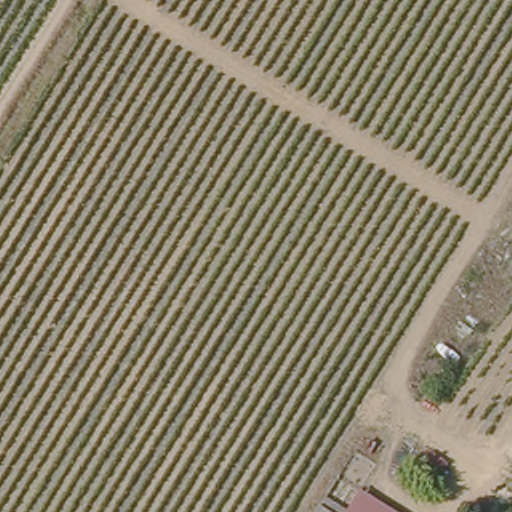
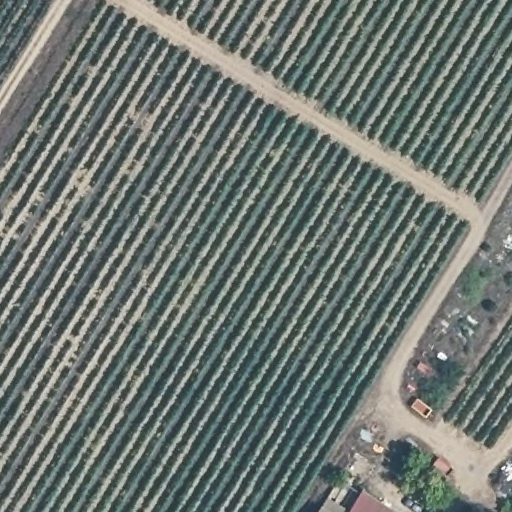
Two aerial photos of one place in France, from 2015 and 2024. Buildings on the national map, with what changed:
unchanged [(393,512),(347,512),(361,492),(393,512)]
unchanged [(341,512),(321,512),(327,503),(341,512)]

